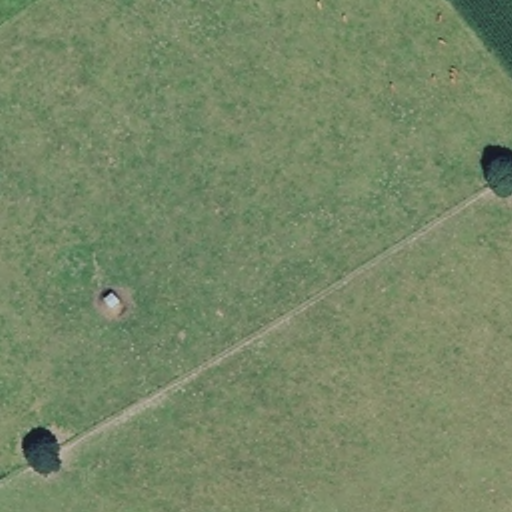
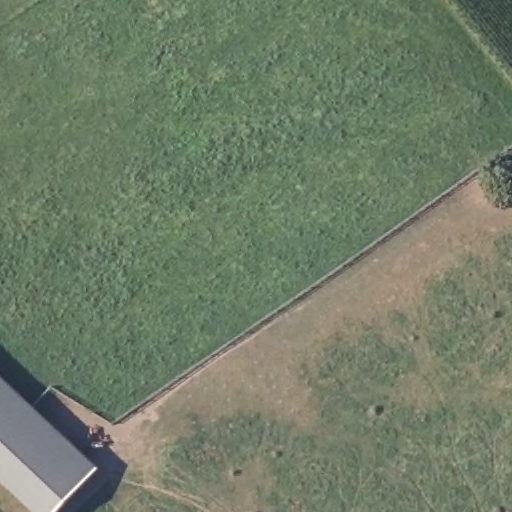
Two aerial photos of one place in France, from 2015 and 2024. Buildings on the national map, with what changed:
new [(57,512),(40,512),(0,475),(0,372),(100,466),(57,512)]

